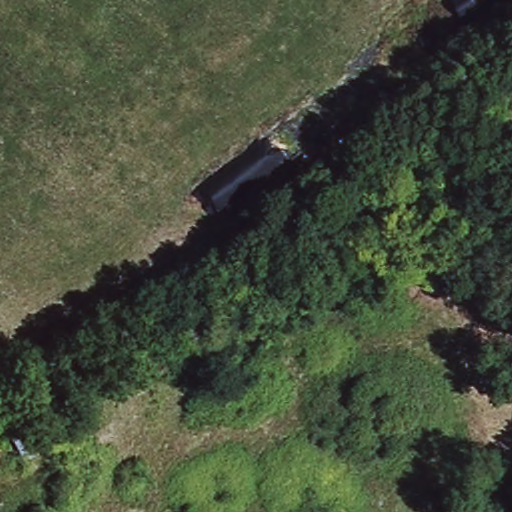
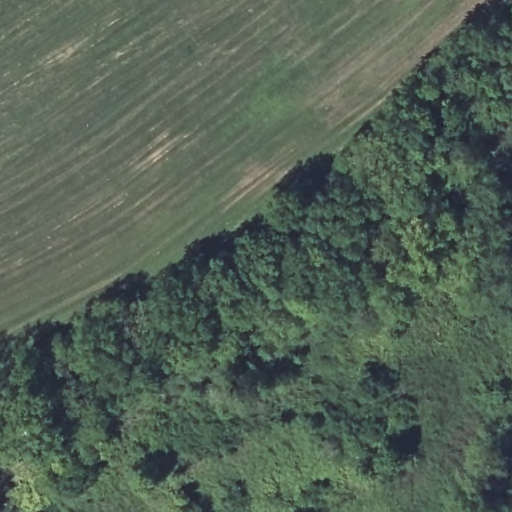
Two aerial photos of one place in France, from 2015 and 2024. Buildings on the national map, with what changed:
unchanged [(13,432),(30,468),(0,483),(0,439),(13,432)]

